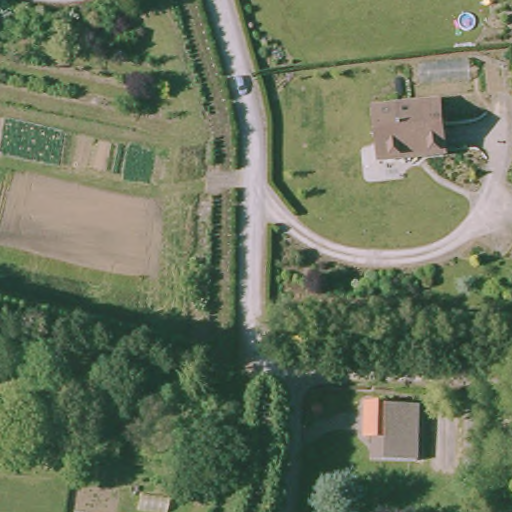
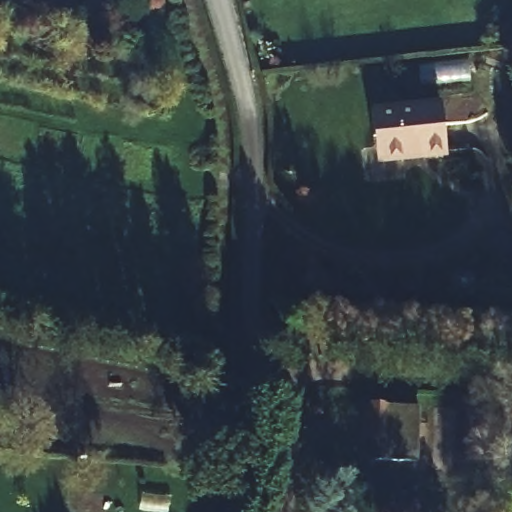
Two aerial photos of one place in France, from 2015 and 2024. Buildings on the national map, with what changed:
unchanged [(438,104),(442,154),(410,157),(410,159),(377,162),(372,110),(438,104)]
unchanged [(400,393),(399,449),(357,448),(357,425),(354,425),(355,392),(400,393)]

